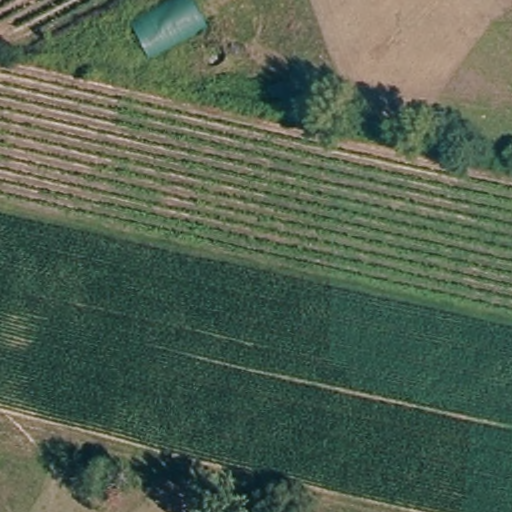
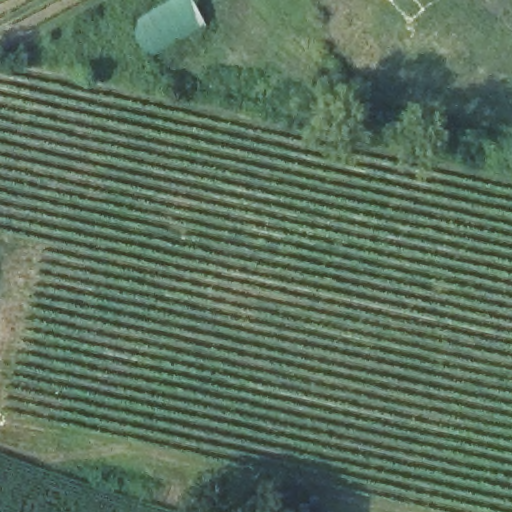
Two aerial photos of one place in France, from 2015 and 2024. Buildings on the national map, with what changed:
unchanged [(195,0),(210,27),(149,59),(132,25),(177,0),(195,0)]

